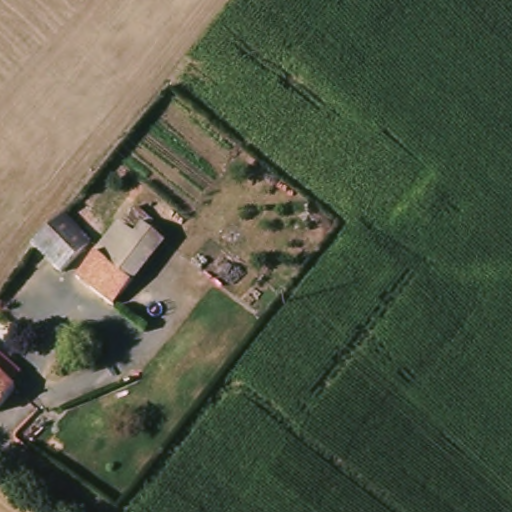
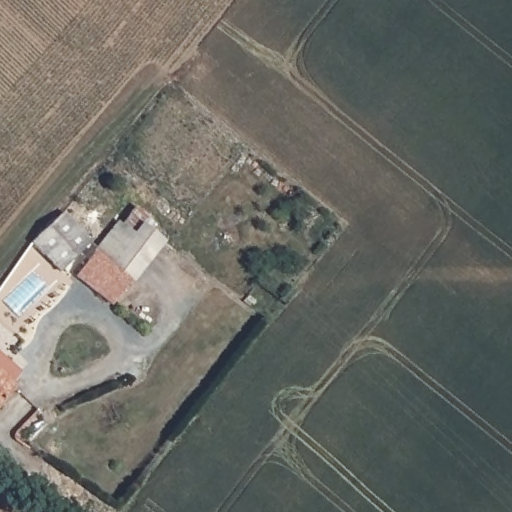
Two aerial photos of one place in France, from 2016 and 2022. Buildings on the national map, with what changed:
unchanged [(108,271),(129,287),(111,311),(74,283),(132,204),(148,216),(142,225),(108,271)]
unchanged [(77,229),(84,222),(98,235),(58,280),(34,258),(25,250),(61,212),(66,218),(77,229)]
unchanged [(164,241),(129,287),(108,271),(142,225),(164,241)]
unchanged [(6,377),(13,369),(27,381),(6,403),(0,405),(0,371),(6,377)]

